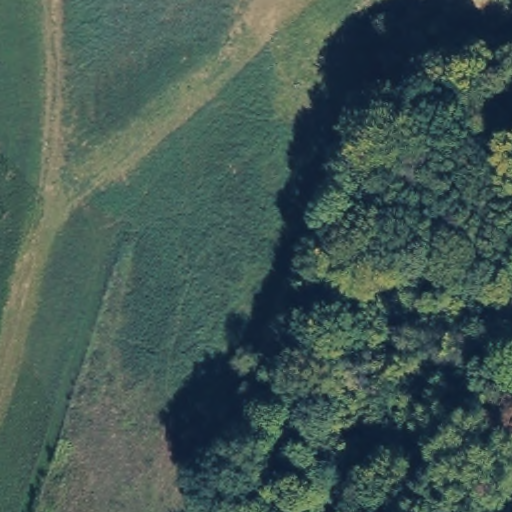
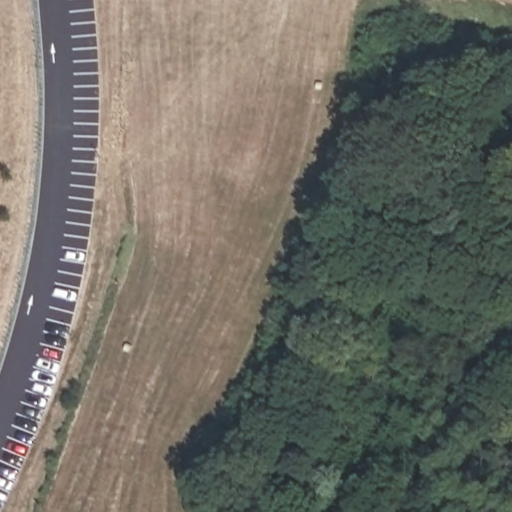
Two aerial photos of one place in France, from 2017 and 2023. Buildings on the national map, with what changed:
unchanged [(446,397),(466,410),(424,460),(405,445),(446,397)]

